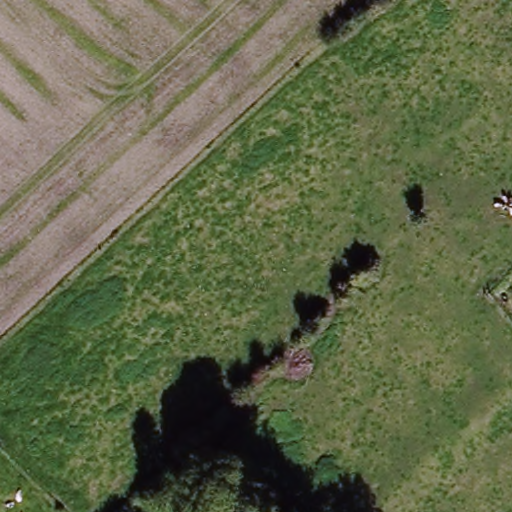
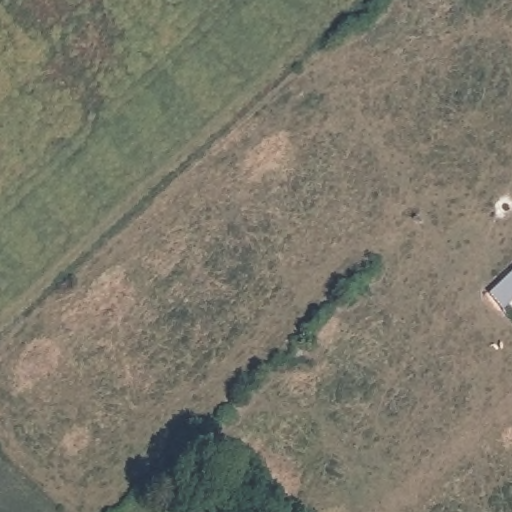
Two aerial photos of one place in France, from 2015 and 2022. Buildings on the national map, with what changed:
new [(504,311),(489,295),(512,273),(512,304),(504,311)]

